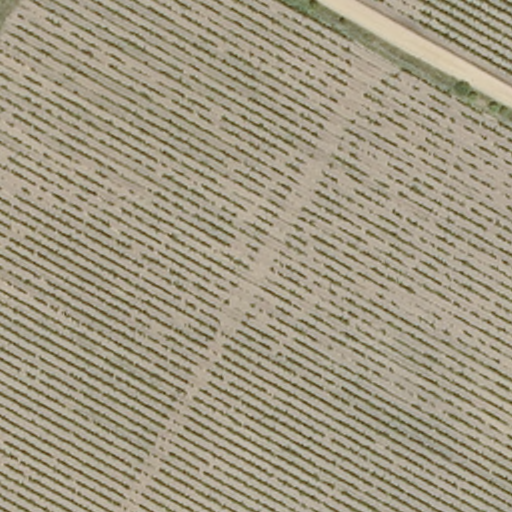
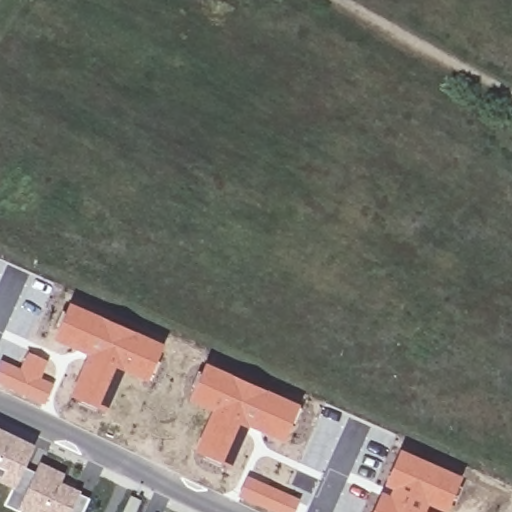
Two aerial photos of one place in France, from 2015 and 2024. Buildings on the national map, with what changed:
new [(69,303),(163,343),(147,381),(124,372),(107,412),(71,396),(87,355),(54,341),(69,303)]
new [(1,361),(21,368),(27,352),(47,360),(41,377),(53,383),(44,404),(0,385),(0,362),(1,361)]
new [(205,363),(300,405),(283,443),(249,427),(231,467),(194,452),(211,411),(188,401),(205,363)]
new [(32,442),(22,464),(39,473),(42,465),(61,474),(57,482),(76,491),(89,497),(82,512),(34,512),(22,506),(20,510),(4,502),(12,487),(13,483),(0,477),(0,427),(32,442)]
new [(446,512),(445,512),(428,505),(426,512),(372,512),(382,491),(390,494),(392,488),(385,486),(401,449),(462,477),(446,512)]
new [(272,512),(238,496),(247,476),(300,498),(294,512),(272,512)]

